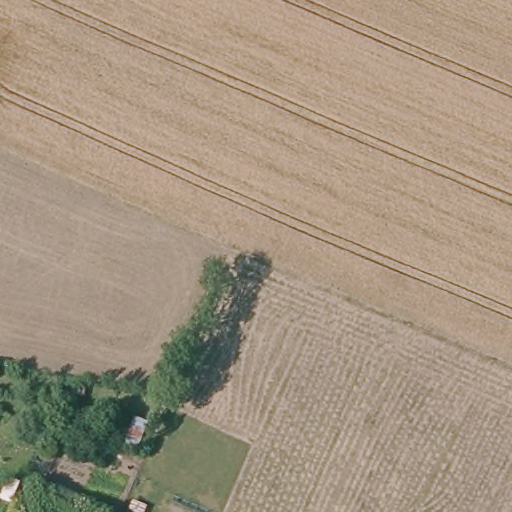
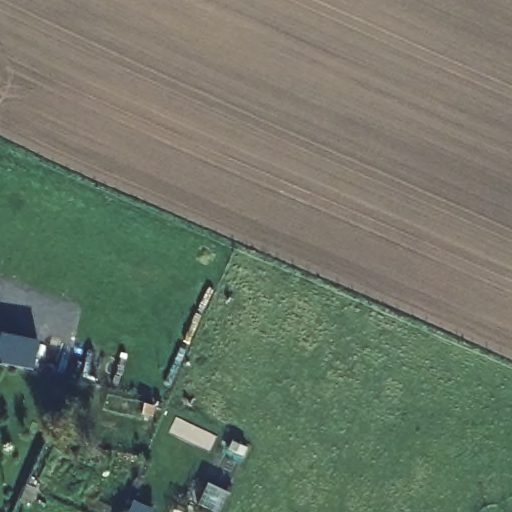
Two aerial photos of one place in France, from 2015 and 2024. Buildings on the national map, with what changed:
new [(0,363),(0,333),(38,342),(32,370),(0,363)]

